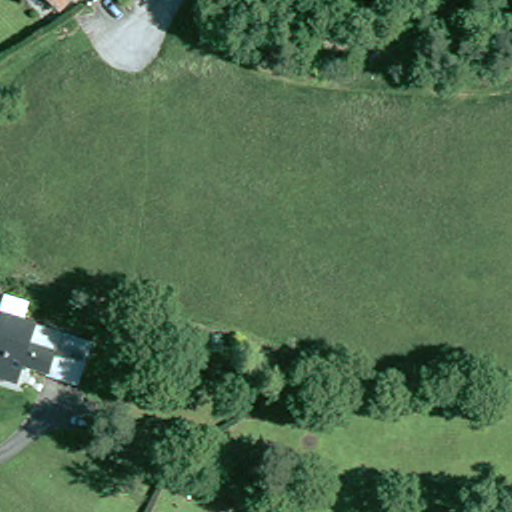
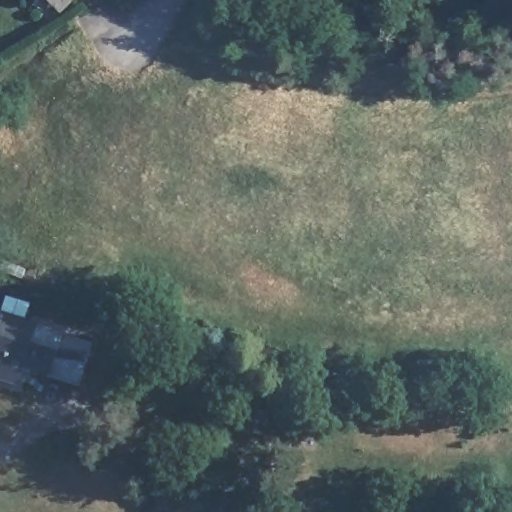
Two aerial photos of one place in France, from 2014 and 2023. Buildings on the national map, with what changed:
unchanged [(51,0),(68,0),(60,8),(51,0)]
unchanged [(79,387),(47,377),(47,374),(25,367),(20,385),(0,378),(0,324),(2,315),(92,343),(79,387)]

